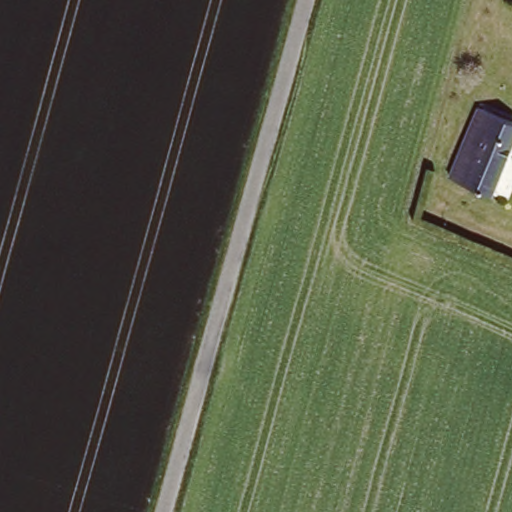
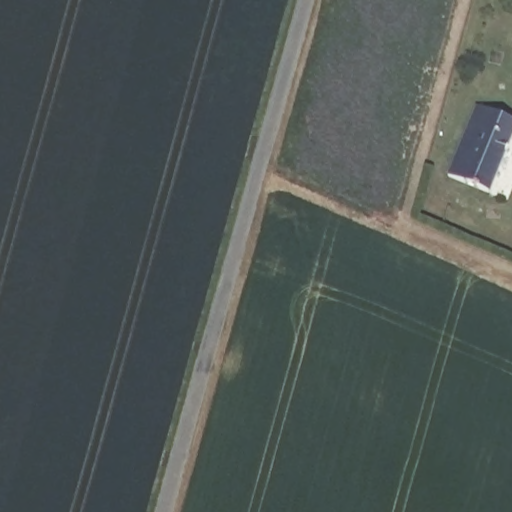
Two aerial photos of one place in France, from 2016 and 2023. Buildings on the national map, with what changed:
unchanged [(512,121),(512,134),(488,191),(448,173),(476,105),(512,121)]

